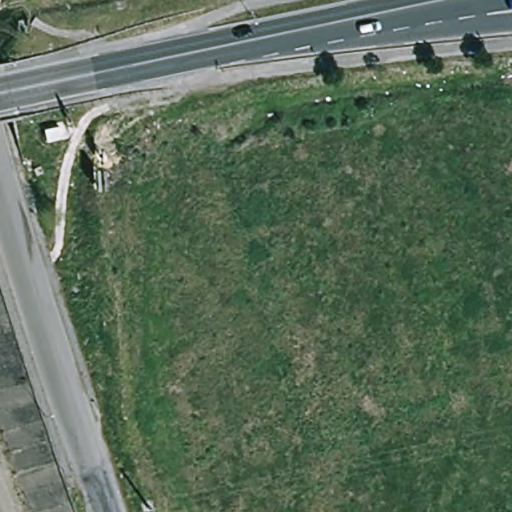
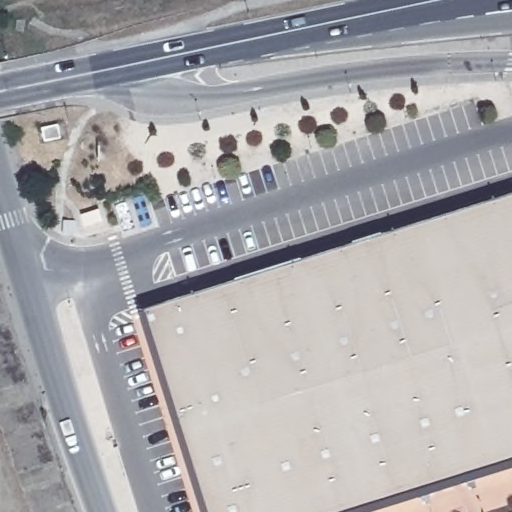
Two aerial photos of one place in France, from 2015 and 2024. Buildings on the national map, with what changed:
new [(199,512),(138,316),(142,314),(141,312),(512,197),(512,470),(379,512),(199,512)]

